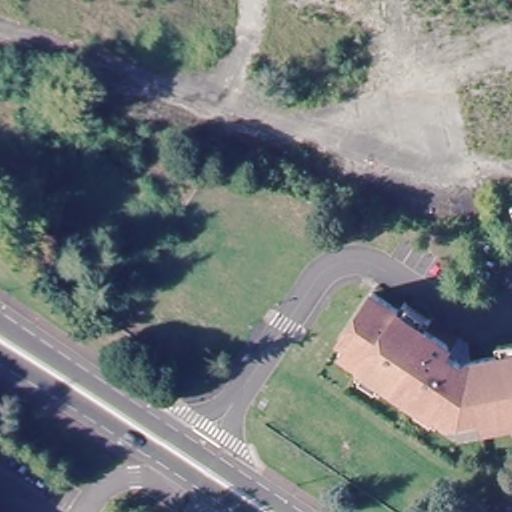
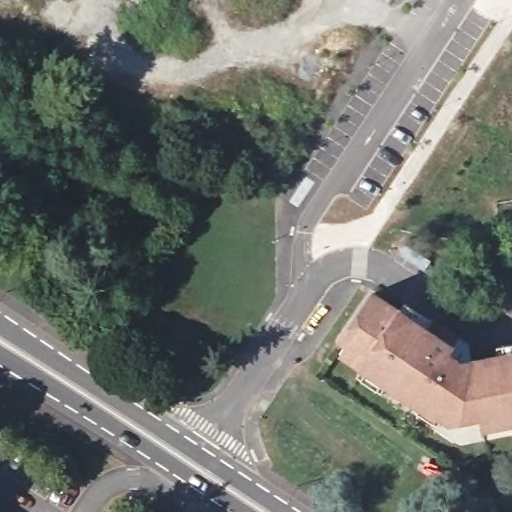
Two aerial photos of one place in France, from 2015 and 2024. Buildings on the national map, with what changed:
unchanged [(448,352),(449,354),(449,356),(449,357),(448,358),(447,360),(461,369),(512,360),(512,429),(488,434),(486,423),(452,428),(417,405),(415,408),(340,358),(346,349),(340,345),(371,298),(446,348),(448,350),(448,352)]

